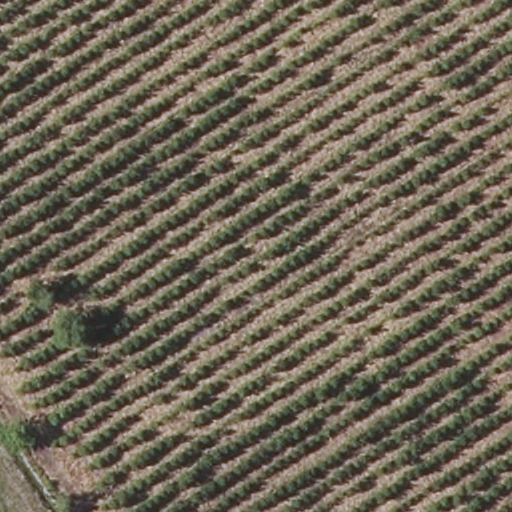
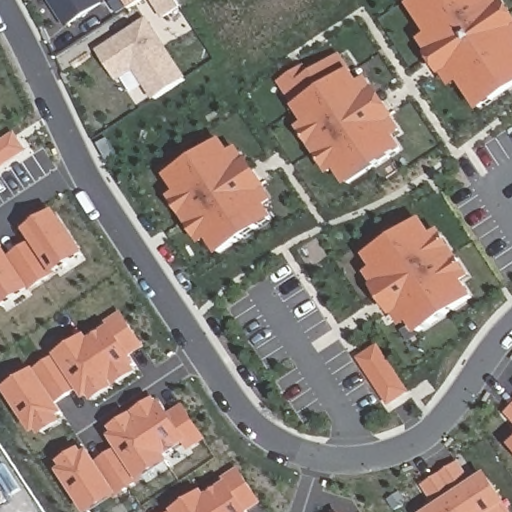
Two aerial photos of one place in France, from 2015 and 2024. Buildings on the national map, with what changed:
new [(68,25),(52,0),(99,0),(101,4),(68,25)]
new [(162,16),(151,0),(175,0),(179,6),(162,16)]
new [(431,54),(422,40),(430,34),(415,11),(430,0),(499,0),(503,6),(512,19),(512,89),(480,111),(465,88),(456,93),(447,78),(431,54)]
new [(146,22),(185,80),(156,99),(135,67),(119,78),(101,52),(146,22)]
new [(322,159),(311,143),(303,130),(311,125),(284,83),(295,76),(306,69),(311,77),(341,57),(361,86),(368,81),(377,94),(393,119),(402,131),(394,137),(402,149),(350,184),(340,168),(331,173),(322,159)]
new [(0,146),(15,136),(24,151),(0,166),(0,146)]
new [(193,228),(183,213),(174,200),(182,195),(171,178),(224,144),(232,156),(240,151),(249,164),(264,189),(273,202),(265,206),(273,219),(221,253),(211,238),(203,243),(193,228)]
new [(0,251),(4,249),(11,260),(37,242),(30,232),(56,215),(79,249),(82,255),(57,271),(29,289),(3,306),(0,302),(0,251)]
new [(394,311),(378,287),(369,274),(377,269),(369,256),(421,222),(431,238),(440,232),(448,246),(458,261),(468,276),(460,281),(470,297),(418,331),(410,319),(402,324),(394,311)]
new [(35,374),(62,355),(88,338),(91,344),(66,361),(113,330),(109,324),(121,316),(142,346),(129,355),(136,366),(88,398),(81,387),(56,404),(63,415),(37,432),(14,396),(10,391),(35,374)]
new [(379,349),(407,392),(390,403),(362,360),(379,349)]
new [(105,505),(98,495),(85,503),(64,473),(76,464),(81,470),(127,439),(101,456),(98,450),(124,433),(150,415),(176,398),(180,404),(204,439),(178,456),(171,445),(146,462),(153,473),(105,505)]
new [(510,415),(512,413),(512,417),(510,415)]
new [(441,509),(427,487),(458,466),(473,487),(487,479),(509,512),(436,512),(441,509)]
new [(230,486),(226,480),(239,472),(259,502),(246,511),(247,512),(191,512),(230,486)]
new [(191,512),(180,512),(205,495),(209,501),(191,512)]
new [(359,511),(359,512),(356,512),(359,511)]

